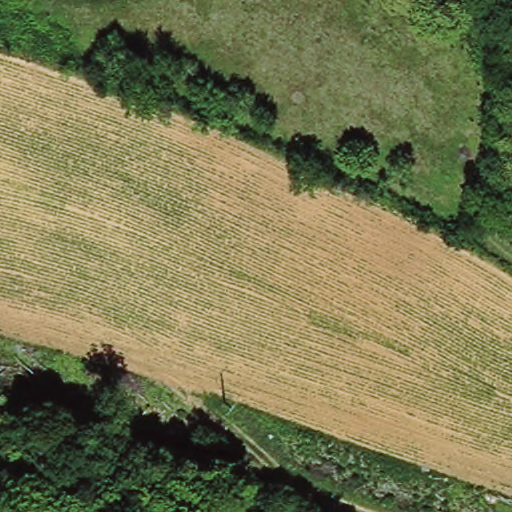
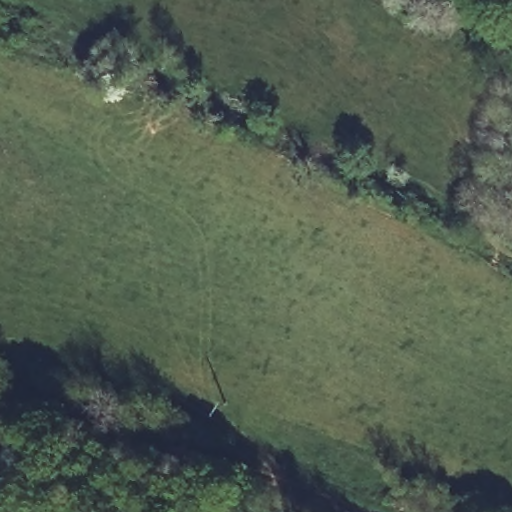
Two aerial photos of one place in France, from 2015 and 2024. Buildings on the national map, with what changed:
[]

